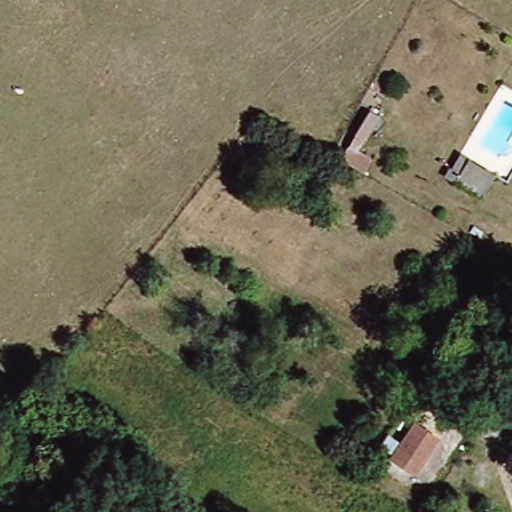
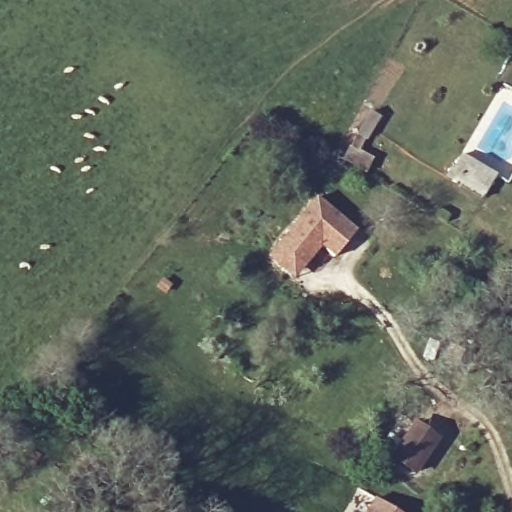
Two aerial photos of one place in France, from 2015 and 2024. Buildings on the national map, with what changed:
new [(363,104),(382,116),(365,141),(360,151),(373,158),(363,177),(331,159),(338,144),(363,104)]
unchanged [(458,157),(496,176),(483,197),(447,179),(458,157)]
new [(315,195),(357,230),(333,257),(321,248),(293,280),(264,255),(315,195)]
unchanged [(405,466),(395,461),(415,424),(427,431),(438,437),(417,473),(405,466)]
new [(374,497),(399,512),(365,512),(374,497)]

